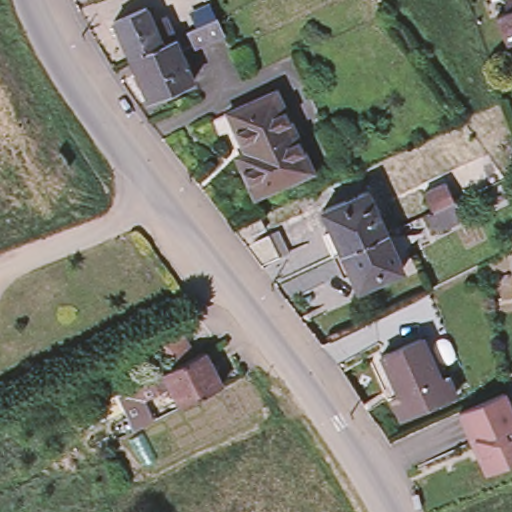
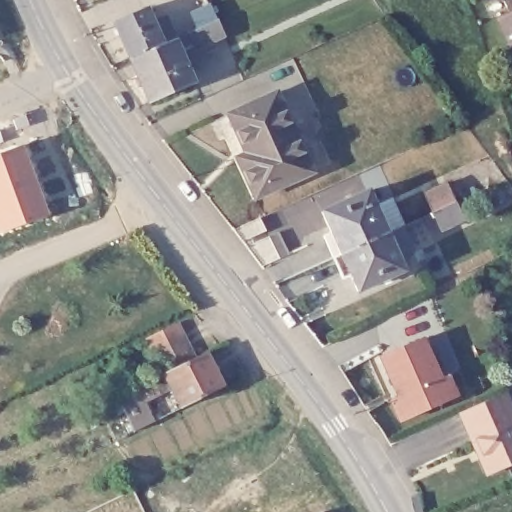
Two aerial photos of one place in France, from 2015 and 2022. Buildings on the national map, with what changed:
unchanged [(493,16),(506,11),(501,1),(502,0),(512,0),(512,40),(505,44),(493,16)]
unchanged [(146,94),(128,52),(112,16),(142,3),(149,17),(161,12),(170,33),(189,75),(146,94)]
unchanged [(190,51),(184,36),(213,23),(219,38),(190,51)]
unchanged [(201,119),(219,111),(267,88),(285,127),(237,149),(227,129),(210,138),(201,119)]
unchanged [(285,127),(304,169),(248,196),(228,155),(238,151),(237,149),(285,127)]
new [(24,148),(49,217),(1,233),(0,230),(0,156),(24,148)]
unchanged [(430,221),(422,204),(414,186),(437,176),(445,194),(453,211),(430,221)]
unchanged [(319,226),(326,223),(317,203),(362,182),(381,225),(329,249),(319,226)]
unchanged [(276,262),(261,269),(232,232),(256,221),(276,262)]
unchanged [(381,225),(400,267),(355,287),(345,266),(339,269),(329,249),(381,225)]
unchanged [(174,316),(191,351),(159,366),(143,331),(174,316)]
unchanged [(438,399),(395,417),(387,397),(399,392),(394,380),(390,382),(377,352),(417,335),(434,376),(442,373),(450,394),(438,399)]
unchanged [(191,351),(200,346),(217,381),(176,401),(159,366),(191,351)]
unchanged [(148,372),(156,388),(139,397),(149,415),(129,425),(112,390),(148,372)]
unchanged [(499,394),(512,423),(512,464),(487,475),(481,473),(475,461),(468,445),(455,414),(499,394)]

